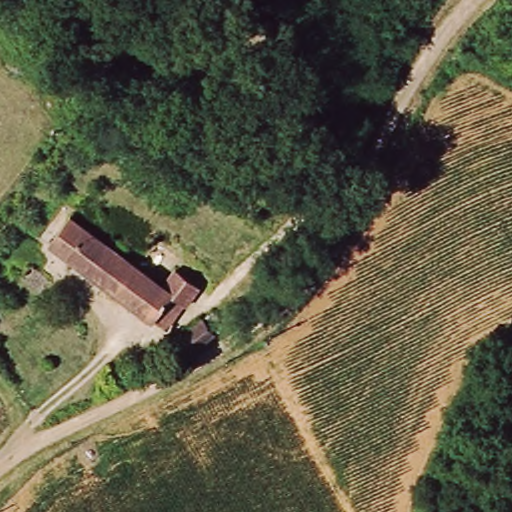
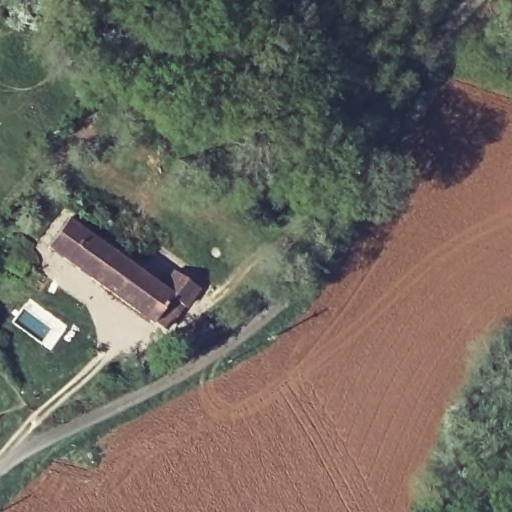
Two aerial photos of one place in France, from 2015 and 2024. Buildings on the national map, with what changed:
unchanged [(160,284),(168,271),(191,285),(165,328),(47,255),(65,225),(160,284)]
unchanged [(170,329),(198,313),(208,329),(178,345),(170,329)]

